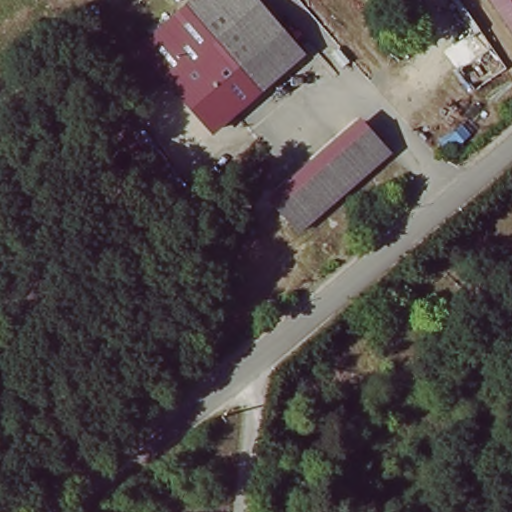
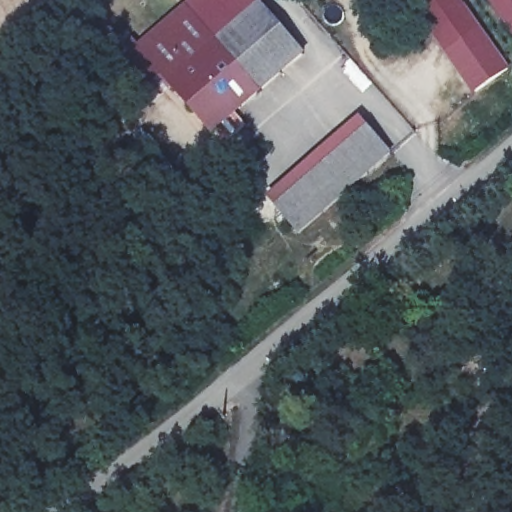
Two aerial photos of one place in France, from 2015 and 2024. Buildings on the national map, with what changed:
unchanged [(164,79),(143,51),(204,0),(255,0),(262,8),(170,85),(164,79)]
new [(486,42),(454,63),(412,0),(458,0),(486,42)]
new [(494,0),(512,0),(512,28),(494,0)]
unchanged [(262,8),(303,60),(209,135),(170,85),(262,8)]
new [(486,42),(501,64),(468,85),(454,63),(486,42)]
unchanged [(124,107),(102,82),(138,50),(164,79),(124,107)]
unchanged [(398,158),(304,236),(282,209),(375,132),(398,158)]

